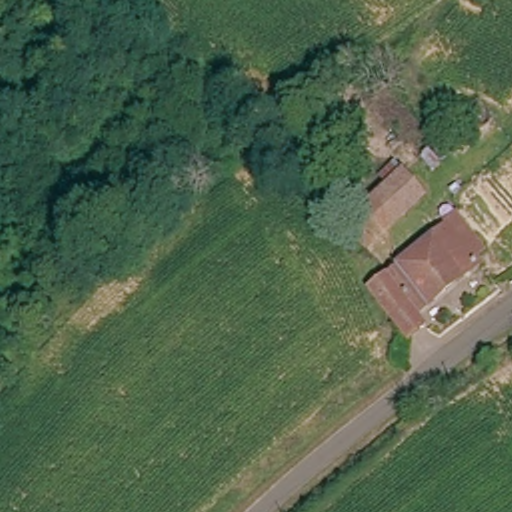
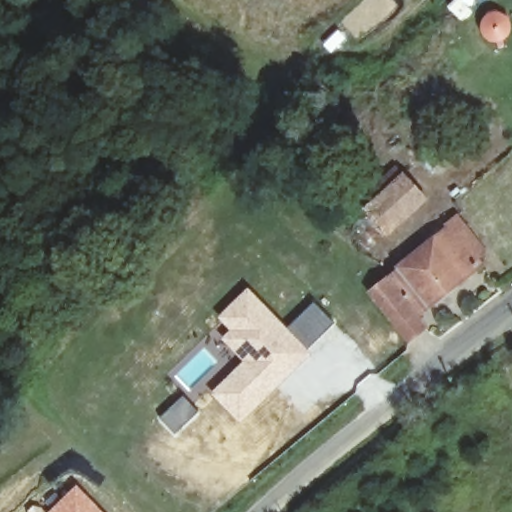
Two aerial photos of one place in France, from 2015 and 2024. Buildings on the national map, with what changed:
unchanged [(388,232),(371,209),(412,175),(430,199),(388,232)]
unchanged [(373,287),(392,272),(410,291),(421,281),(407,261),(460,222),(465,219),(488,252),(482,258),(486,262),(420,312),(428,325),(411,338),(373,287)]
new [(287,328),(315,302),(335,323),(306,349),(311,354),(239,423),(210,392),(244,361),(221,339),(230,330),(217,318),(247,288),(287,328)]
new [(77,483),(104,512),(48,512),(77,483)]

